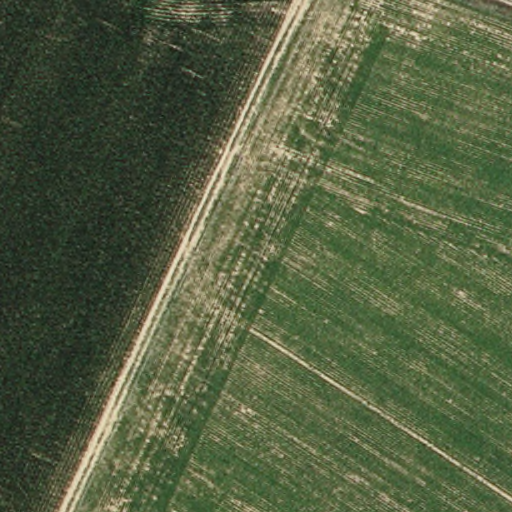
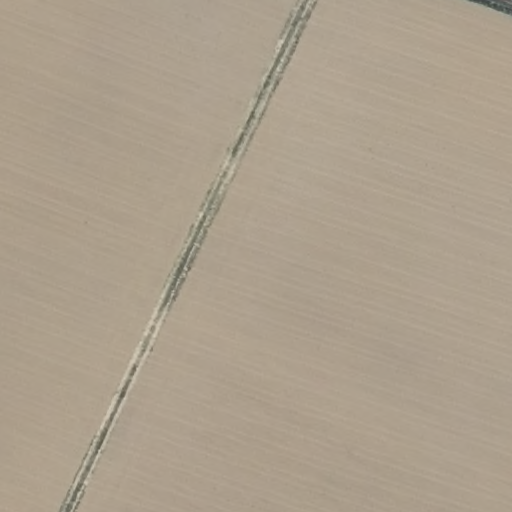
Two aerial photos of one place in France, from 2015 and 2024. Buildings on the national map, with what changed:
[]

